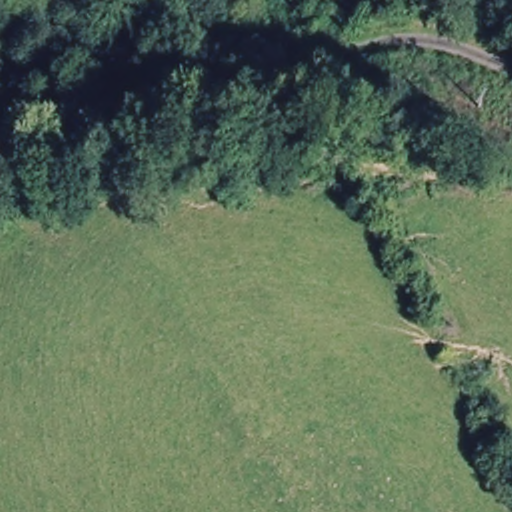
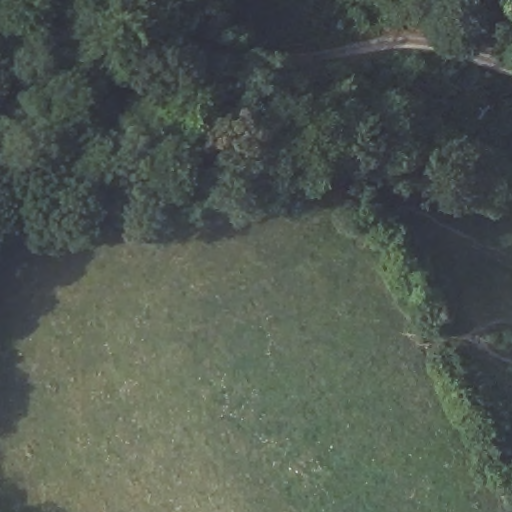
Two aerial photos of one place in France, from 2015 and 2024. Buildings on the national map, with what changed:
[]

